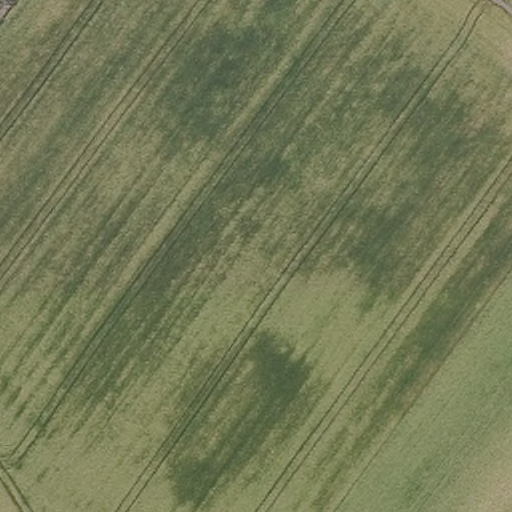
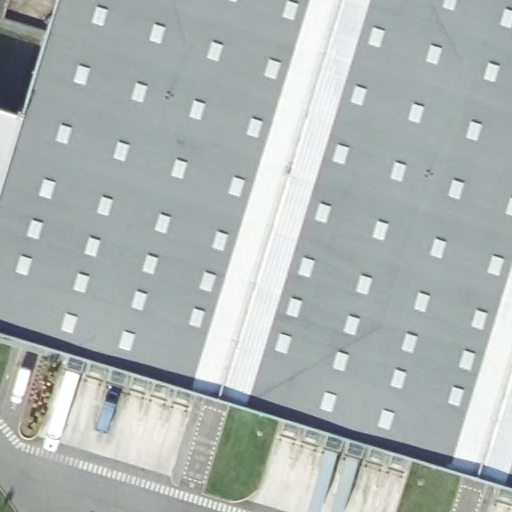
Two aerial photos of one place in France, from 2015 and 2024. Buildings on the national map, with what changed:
new [(0,324),(0,166),(52,0),(512,0),(512,479),(0,324)]
new [(3,16),(8,0),(51,0),(43,29),(3,16)]
new [(0,166),(0,108),(16,113),(0,166)]

